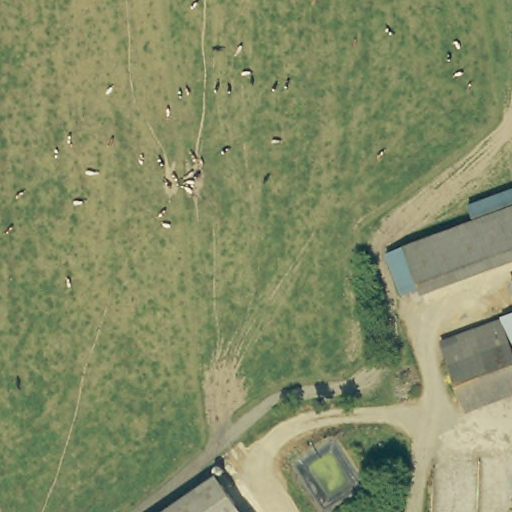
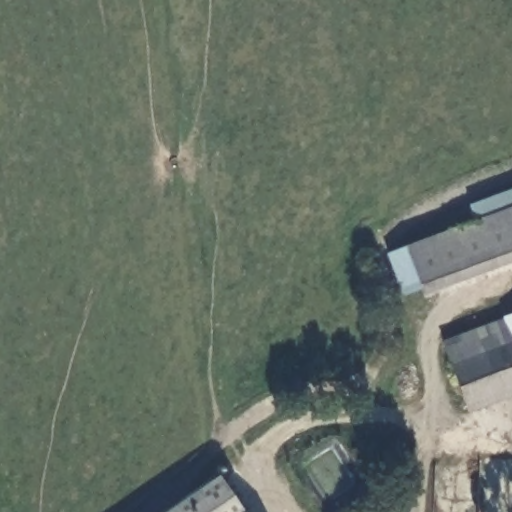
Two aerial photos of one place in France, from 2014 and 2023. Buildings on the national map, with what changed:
unchanged [(410,284),(397,250),(505,213),(512,210),(512,256),(412,290),(410,284)]
unchanged [(512,282),(511,277),(512,277),(512,282)]
unchanged [(512,312),(512,329),(506,313),(512,312)]
unchanged [(512,387),(469,402),(443,336),(506,313),(512,329),(512,387)]
unchanged [(240,512),(157,512),(213,473),(240,512)]

